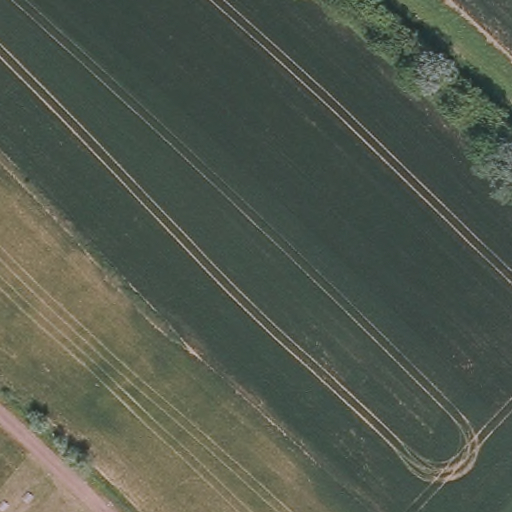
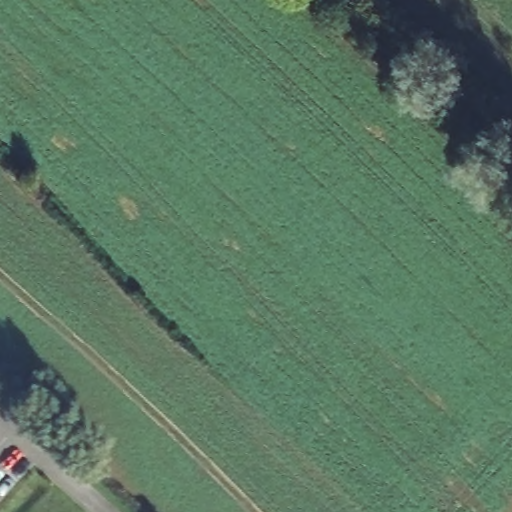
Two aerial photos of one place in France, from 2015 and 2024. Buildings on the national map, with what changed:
[]

